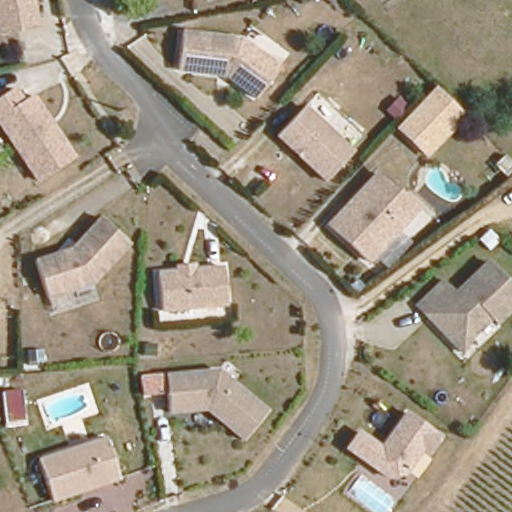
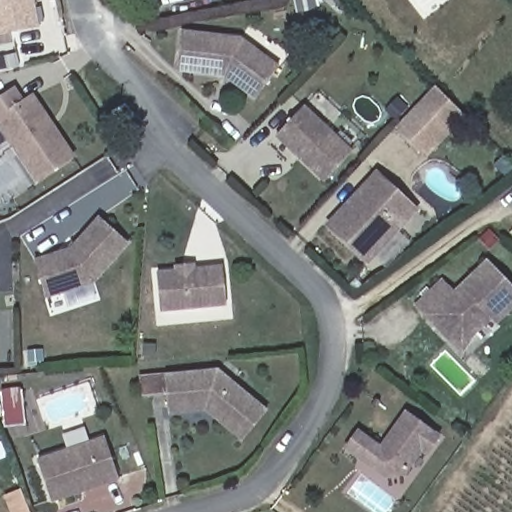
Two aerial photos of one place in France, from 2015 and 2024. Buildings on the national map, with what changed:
unchanged [(34,23),(0,30),(0,0),(29,0),(34,23)]
unchanged [(181,23),(239,30),(277,58),(254,89),(224,67),(177,61),(181,23)]
unchanged [(23,98),(32,92),(75,158),(35,184),(0,129),(0,94),(14,85),(23,98)]
unchanged [(448,101),(435,116),(447,126),(424,152),(396,127),(432,87),(448,101)]
unchanged [(296,105),(345,149),(320,178),(271,134),(296,105)]
unchanged [(332,226),(377,173),(405,197),(417,207),(404,223),(372,260),(332,226)]
unchanged [(32,260),(68,248),(96,216),(125,241),(89,281),(44,296),(32,260)]
unchanged [(429,320),(415,306),(441,281),(453,293),(485,261),(512,288),(512,305),(495,322),(490,316),(473,333),(463,354),(429,320)]
unchanged [(222,303),(155,308),(152,271),(172,269),(172,265),(189,263),(189,268),(219,266),(222,303)]
unchanged [(222,368),(270,405),(248,433),(227,417),(227,411),(217,403),(175,409),(171,374),(222,368)]
unchanged [(28,413),(2,416),(0,390),(25,388),(28,413)]
unchanged [(353,431),(375,447),(400,413),(433,436),(421,453),(415,450),(398,473),(380,476),(341,447),(353,431)]
unchanged [(118,482),(51,503),(37,460),(105,437),(118,482)]

